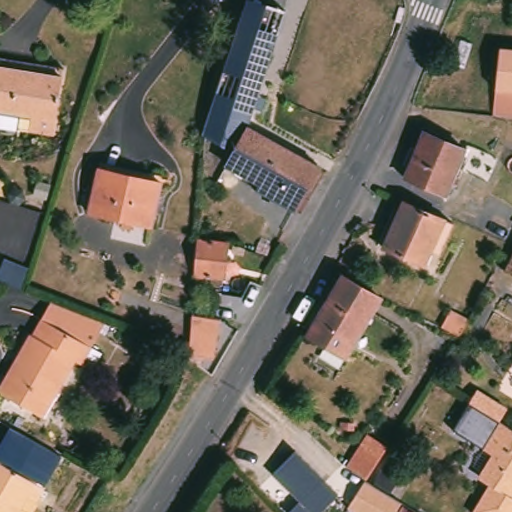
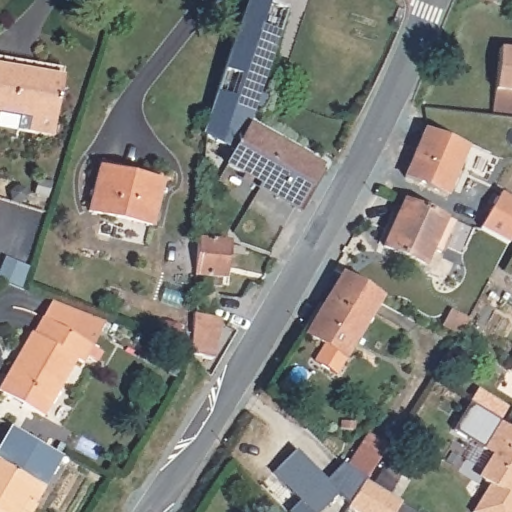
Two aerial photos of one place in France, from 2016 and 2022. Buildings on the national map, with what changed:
unchanged [(300,206),(265,187),(230,169),(237,152),(222,144),(224,166),(207,166),(207,136),(209,126),(210,122),(229,59),(249,0),(253,0),(287,12),(272,60),(250,124),(272,136),(322,165),(319,171),(300,206)]
unchanged [(502,48),(512,49),(512,90),(499,89),(502,48)]
unchanged [(66,76),(50,142),(27,137),(29,123),(0,117),(0,61),(66,76)]
unchanged [(467,151),(447,194),(405,177),(423,133),(467,151)]
unchanged [(165,186),(156,228),(92,214),(100,171),(165,186)]
new [(512,204),(512,243),(509,249),(481,233),(492,212),(499,198),(512,204)]
unchanged [(450,223),(437,254),(429,250),(422,266),(383,249),(401,204),(450,223)]
unchanged [(224,243),(221,287),(209,286),(208,277),(193,277),(196,241),(224,243)]
unchanged [(383,296),(347,356),(308,333),(343,273),(383,296)]
unchanged [(58,301),(110,321),(96,347),(47,319),(58,301)]
unchanged [(217,319),(211,359),(187,356),(190,316),(217,319)]
unchanged [(40,332),(47,319),(96,347),(86,365),(81,362),(47,417),(0,390),(12,370),(24,348),(35,330),(40,332)]
unchanged [(499,421),(512,429),(512,512),(474,512),(489,486),(477,479),(493,452),(483,447),(499,421)]
unchanged [(337,494),(320,512),(287,512),(300,499),(273,473),(294,451),(337,494)]
unchanged [(49,490),(38,508),(30,503),(25,512),(0,512),(0,462),(49,490)]
unchanged [(401,502),(395,512),(348,512),(367,483),(401,502)]

